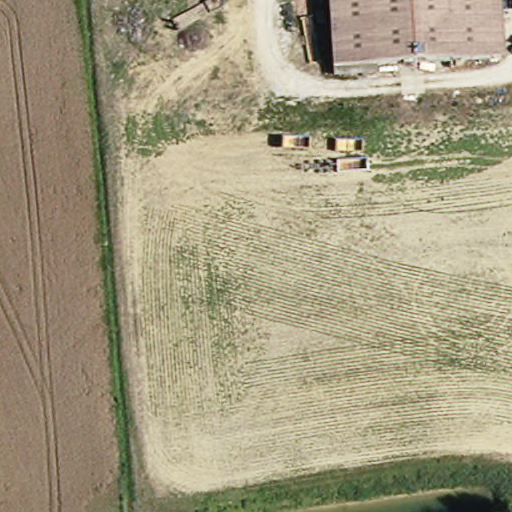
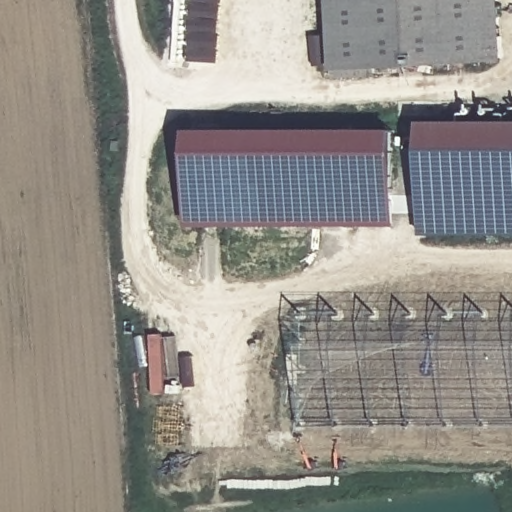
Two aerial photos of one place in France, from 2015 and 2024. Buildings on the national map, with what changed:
unchanged [(340,67),(334,0),(505,0),(507,59),(340,67)]
new [(512,236),(422,236),(422,123),(512,123),(512,236)]
new [(390,226),(183,226),(183,133),(387,132),(390,226)]

